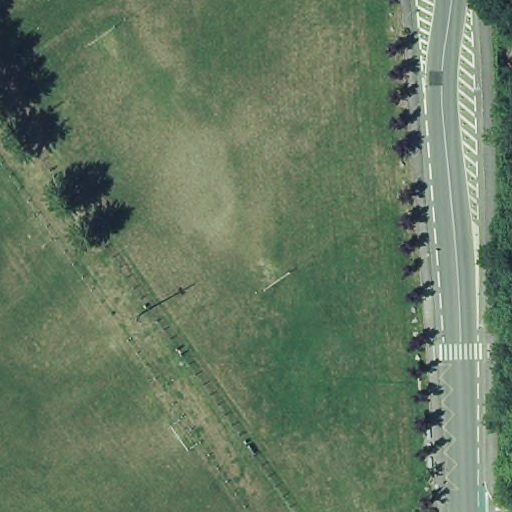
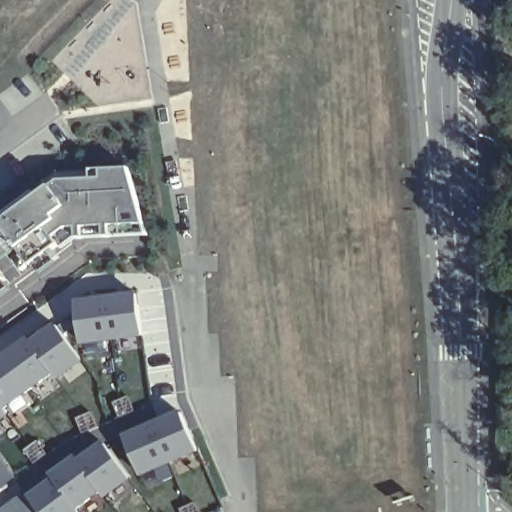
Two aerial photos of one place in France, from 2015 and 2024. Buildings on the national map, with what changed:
new [(80,237),(62,247),(61,245),(55,249),(60,257),(38,270),(33,265),(20,248),(0,260),(0,217),(58,173),(101,170),(130,169),(145,224),(148,235),(80,237)]
new [(7,279),(11,287),(0,296),(0,269),(7,279)]
new [(139,294),(143,337),(83,344),(77,300),(139,294)]
new [(30,339),(32,344),(56,326),(83,359),(57,378),(53,374),(6,410),(9,415),(0,422),(0,361),(30,339)]
new [(182,414),(198,453),(143,477),(126,437),(182,414)]
new [(53,476),(77,459),(80,461),(105,443),(131,479),(105,497),(100,492),(80,509),(81,512),(41,512),(32,497),(53,482),(53,476)]
new [(15,478),(0,489),(0,456),(15,478)]

